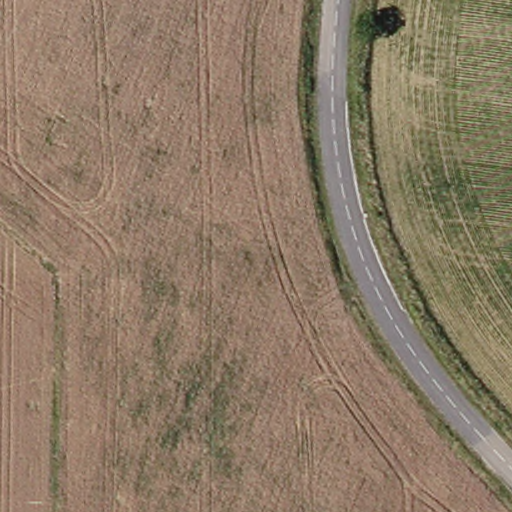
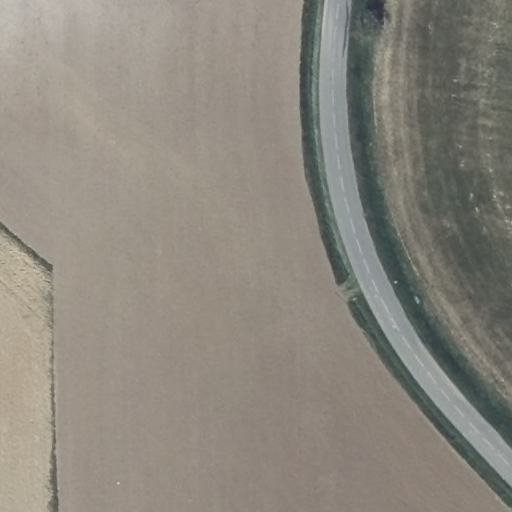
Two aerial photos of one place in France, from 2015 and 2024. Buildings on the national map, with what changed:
[]

